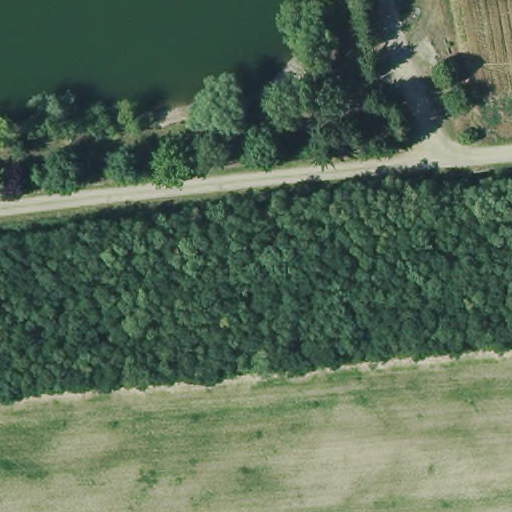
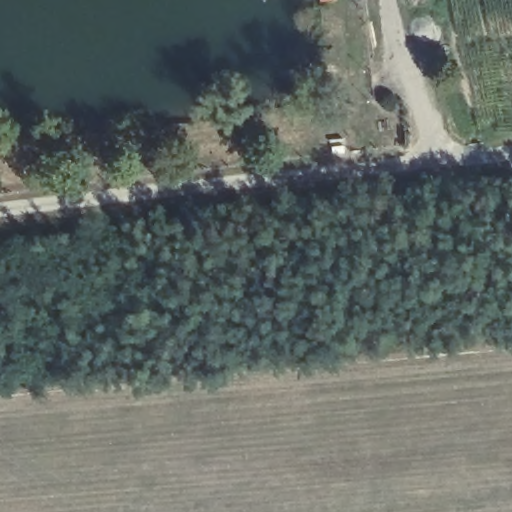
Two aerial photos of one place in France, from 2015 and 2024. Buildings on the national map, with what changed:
unchanged [(343,141),(345,149),(330,151),(329,143),(343,141)]

